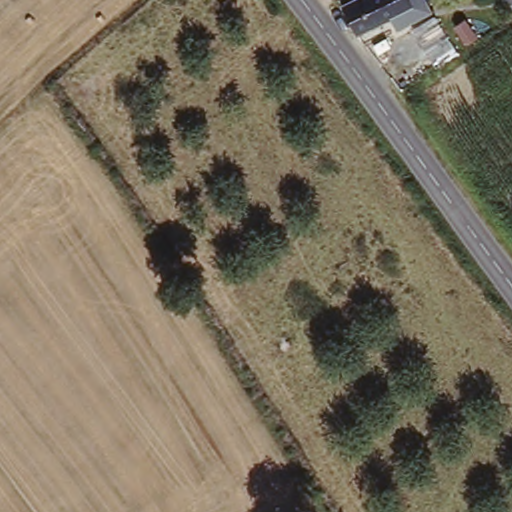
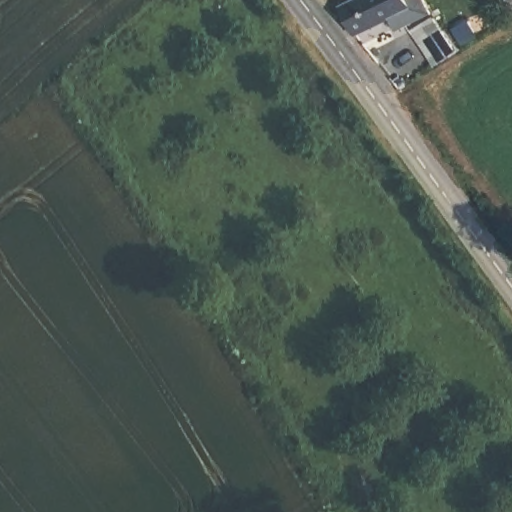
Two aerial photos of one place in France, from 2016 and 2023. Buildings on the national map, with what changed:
unchanged [(408,0),(409,1),(386,15),(381,7),(347,29),(332,10),(349,0),(408,0)]
unchanged [(510,5),(512,3),(512,8),(510,5)]
unchanged [(451,50),(432,63),(412,27),(432,15),(451,50)]

